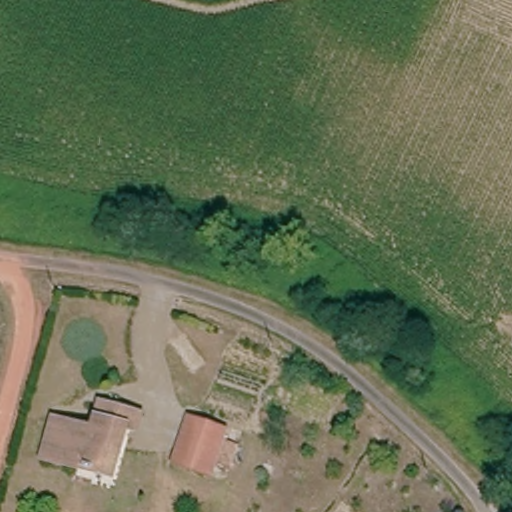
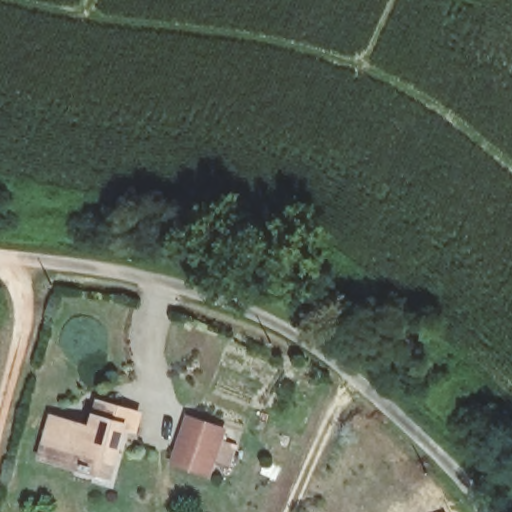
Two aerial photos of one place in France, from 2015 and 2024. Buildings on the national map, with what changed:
unchanged [(87,466),(42,453),(54,412),(90,421),(96,397),(118,403),(138,409),(134,422),(124,420),(112,462),(109,472),(87,466)]
unchanged [(213,478),(176,467),(190,422),(226,433),(213,478)]

